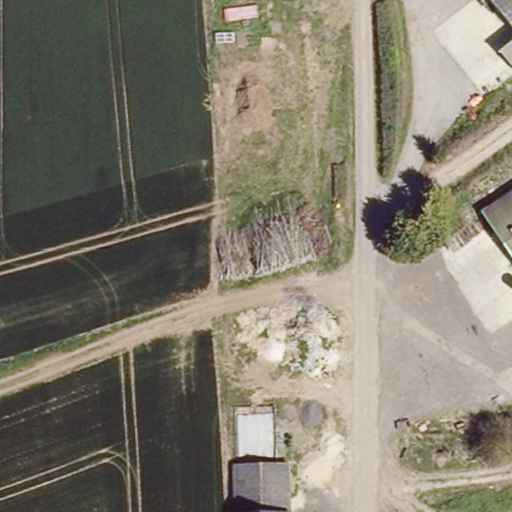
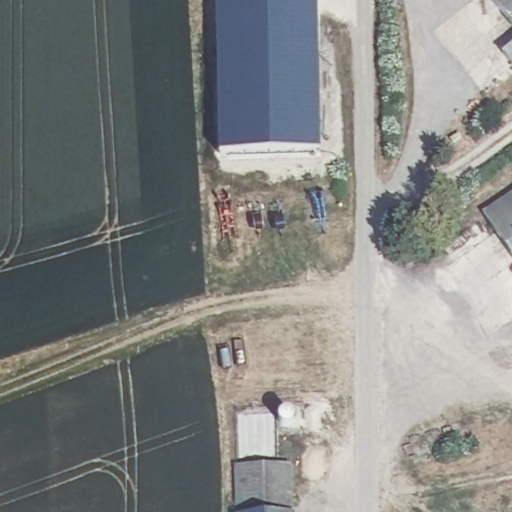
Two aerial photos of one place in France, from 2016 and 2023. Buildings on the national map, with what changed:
new [(319,153),(217,156),(222,0),(317,0),(319,153)]
unchanged [(512,24),(493,0),(512,0),(512,24)]
unchanged [(512,38),(512,55),(504,45),(512,38)]
unchanged [(512,180),(512,258),(476,203),(512,180)]
unchanged [(294,464),(296,512),(230,512),(229,467),(294,464)]

